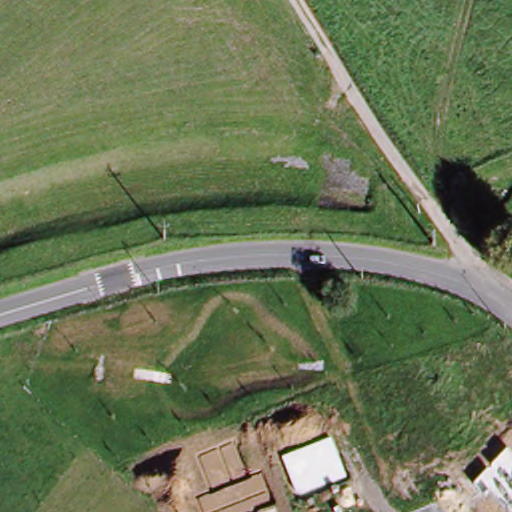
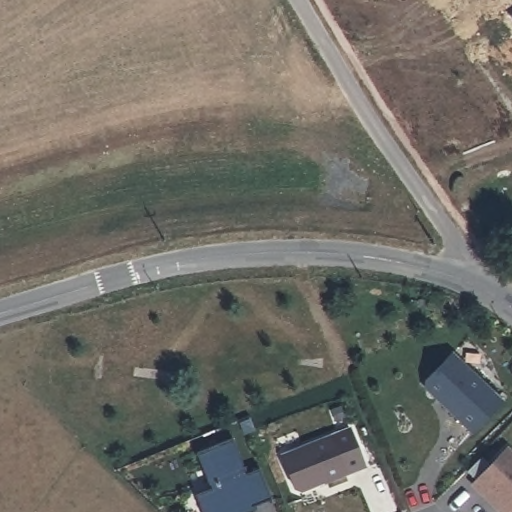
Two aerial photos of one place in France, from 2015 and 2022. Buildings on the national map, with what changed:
new [(512,16),(510,13),(512,12),(512,16)]
new [(430,382),(456,355),(507,403),(477,435),(430,390),(430,382)]
new [(330,433),(347,475),(302,492),(295,490),(280,452),(330,433)]
new [(247,473),(260,468),(273,498),(253,506),(255,511),(254,512),(204,512),(196,493),(212,487),(197,451),(232,437),(247,473)]
unchanged [(512,453),(512,512),(490,492),(486,494),(475,481),(505,447),(512,453)]

